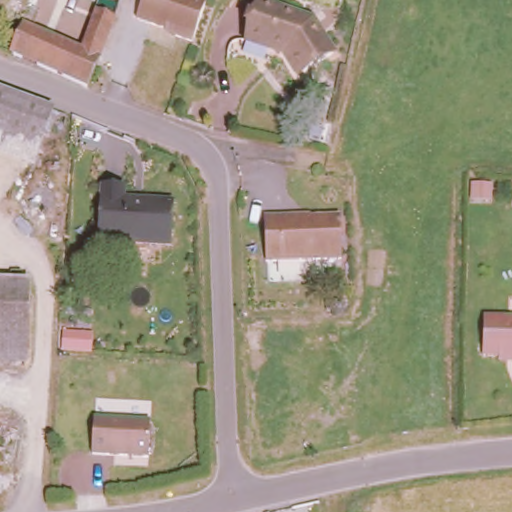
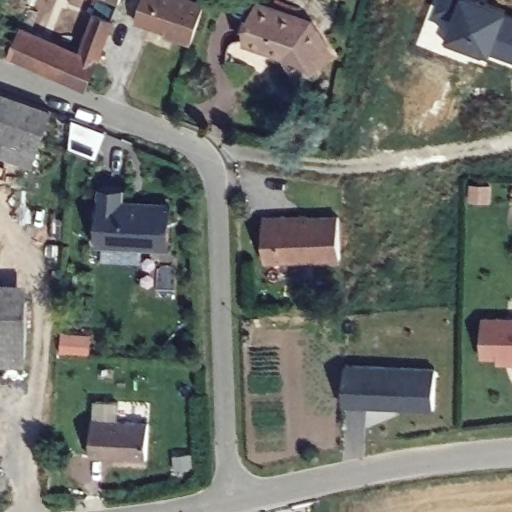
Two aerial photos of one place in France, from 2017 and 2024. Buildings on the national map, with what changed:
unchanged [(109,0),(118,0),(117,3),(109,0)]
unchanged [(182,37),(182,34),(132,17),(138,0),(202,0),(190,40),(182,37)]
new [(492,53),(447,36),(455,13),(437,8),(440,0),(491,0),(510,7),(509,11),(512,12),(512,54),(495,45),(492,53)]
unchanged [(259,5),(312,21),(333,55),(300,76),(286,55),(247,43),(259,5)]
unchanged [(80,49),(93,12),(111,18),(89,87),(13,54),(23,25),(80,49)]
unchanged [(0,154),(0,92),(49,110),(35,146),(28,164),(0,154)]
unchanged [(97,245),(100,187),(125,188),(126,199),(173,202),(172,247),(97,245)]
unchanged [(490,189),(489,204),(471,203),(472,188),(490,189)]
unchanged [(259,255),(262,210),(289,212),(289,216),(318,218),(344,219),(342,261),(323,259),(259,255)]
unchanged [(30,279),(25,363),(0,362),(0,278),(30,279)]
unchanged [(512,359),(490,358),(491,318),(512,319),(512,359)]
new [(436,368),(435,410),(344,407),(346,364),(436,368)]
unchanged [(147,420),(149,453),(103,455),(95,455),(92,423),(106,422),(147,420)]

